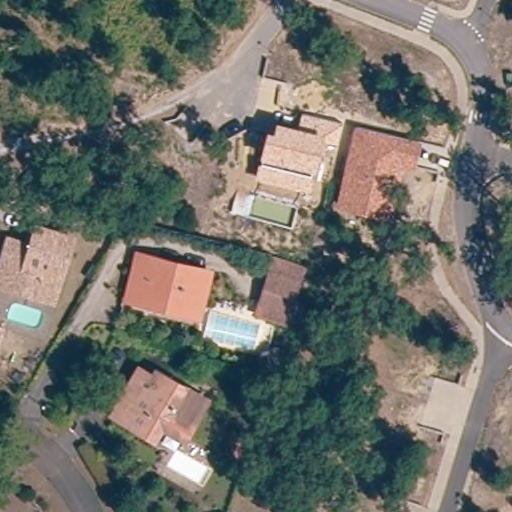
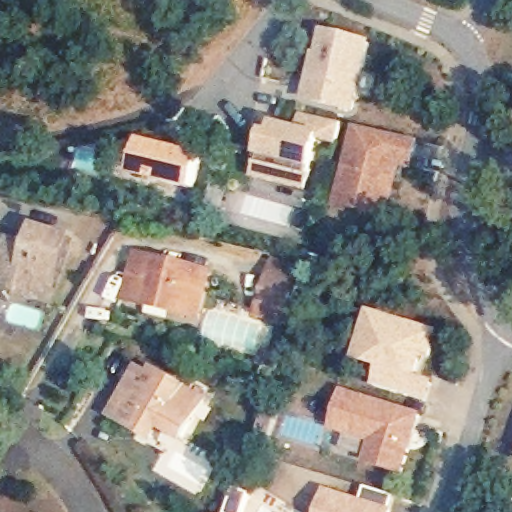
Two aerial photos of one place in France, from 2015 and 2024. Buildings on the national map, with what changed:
new [(319,54),(325,31),(374,44),(357,115),(302,102),(314,54),(319,54)]
unchanged [(342,123),(338,145),(320,142),(310,191),(254,179),(266,132),(273,133),(275,122),(298,129),(302,114),(342,123)]
unchanged [(420,141),(414,170),(401,167),(389,219),(334,207),(354,126),(420,141)]
new [(134,180),(141,141),(208,156),(199,195),(134,180)]
unchanged [(0,283),(0,268),(9,236),(35,243),(40,225),(77,235),(62,286),(58,300),(23,290),(0,283)]
unchanged [(294,313),(263,304),(277,255),(308,264),(294,313)]
unchanged [(125,301),(136,258),(208,275),(198,318),(182,315),(145,306),(125,301)]
new [(353,379),(373,311),(442,331),(434,360),(426,358),(421,378),(437,383),(431,403),(353,379)]
unchanged [(0,346),(0,324),(6,326),(0,346)]
unchanged [(273,336),(285,329),(289,330),(294,332),(289,351),(284,350),(270,346),(273,336)]
unchanged [(148,423),(119,407),(145,365),(159,373),(163,368),(212,398),(192,433),(169,420),(163,433),(148,423)]
new [(425,414),(407,477),(364,465),(371,443),(333,432),(344,390),(425,414)]
unchanged [(238,450),(244,430),(256,434),(250,454),(238,450)]
new [(368,489),(398,498),(394,512),(320,512),(328,490),(364,502),(368,489)]

